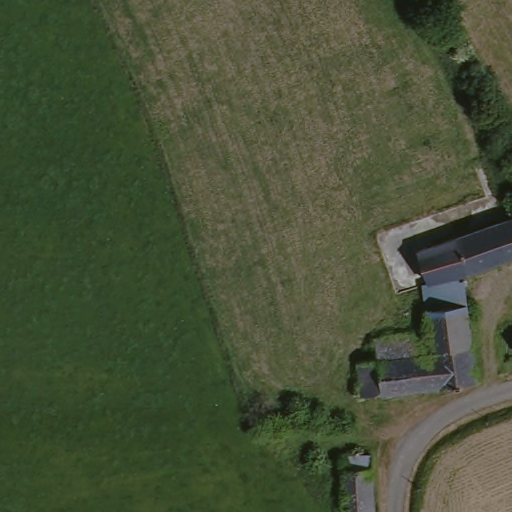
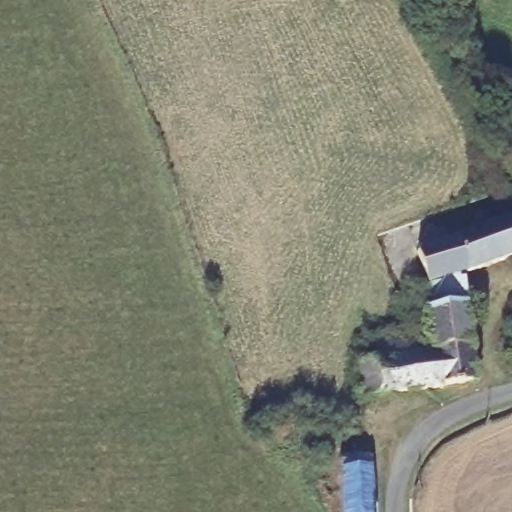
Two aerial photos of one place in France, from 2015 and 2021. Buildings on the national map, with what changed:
unchanged [(512,223),(512,261),(471,270),(462,237),(512,223)]
unchanged [(433,280),(424,247),(462,237),(471,270),(433,280)]
unchanged [(433,286),(426,286),(427,294),(397,298),(393,273),(403,271),(399,253),(424,247),(433,280),(433,286)]
unchanged [(427,294),(426,286),(433,286),(461,282),(468,322),(431,325),(427,294)]
unchanged [(365,368),(387,364),(383,343),(432,336),(431,325),(468,322),(478,382),(435,389),(392,395),(371,398),(365,368)]
unchanged [(505,346),(512,345),(512,369),(510,369),(505,346)]
unchanged [(335,462),(364,461),(369,512),(338,512),(335,462)]

